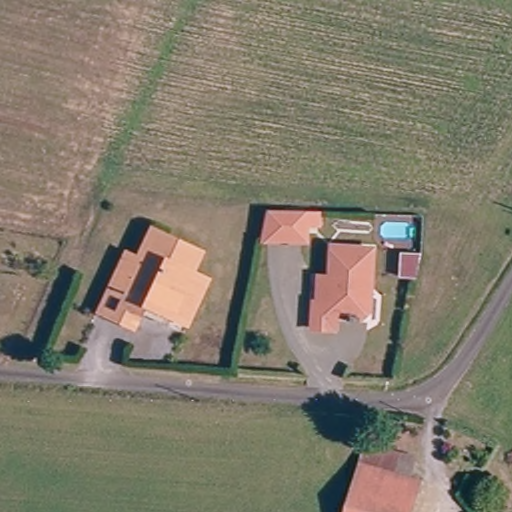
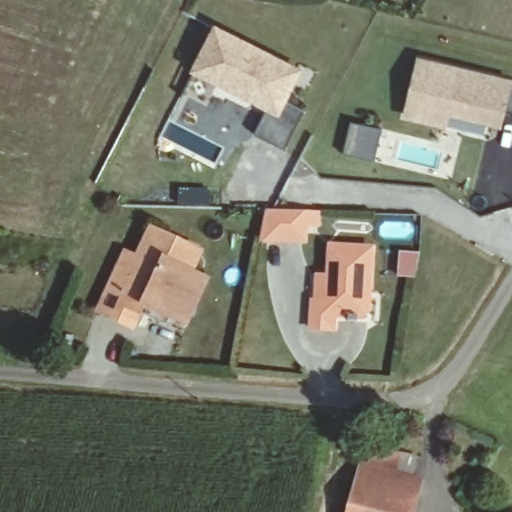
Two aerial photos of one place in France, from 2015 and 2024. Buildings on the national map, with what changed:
new [(305,70),(287,101),(306,111),(285,150),(255,133),(268,110),(190,72),(215,25),(305,70)]
new [(482,117),(440,106),(436,119),(399,110),(412,54),(460,66),(481,71),(512,78),(512,106),(495,102),(495,104),(491,119),(482,117)]
unchanged [(261,230),(267,202),(305,203),(320,203),(320,218),(304,217),(304,232),(261,230)]
unchanged [(144,328),(120,317),(107,312),(131,253),(145,259),(158,228),(208,249),(197,276),(215,283),(196,325),(179,317),(175,328),(149,317),(144,328)]
unchanged [(340,276),(342,245),(380,248),(377,284),(375,284),(374,293),(379,300),(378,306),(370,314),(368,314),(365,317),(365,320),(354,318),(354,315),(343,314),(341,325),(320,324),(322,300),(327,300),(330,275),(340,276)]
unchanged [(371,441),(420,452),(415,474),(365,463),(371,441)]
unchanged [(350,512),(365,463),(415,474),(425,476),(415,512),(350,512)]

